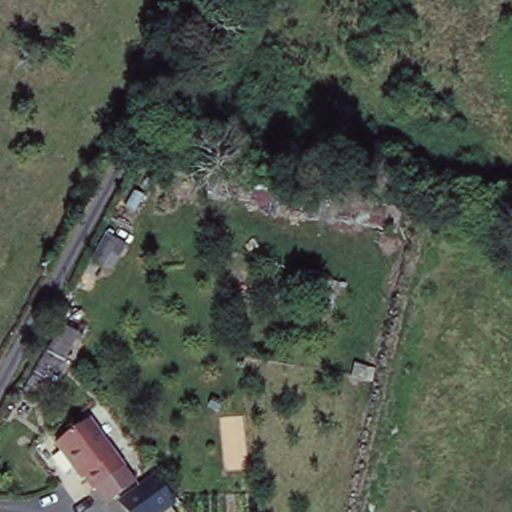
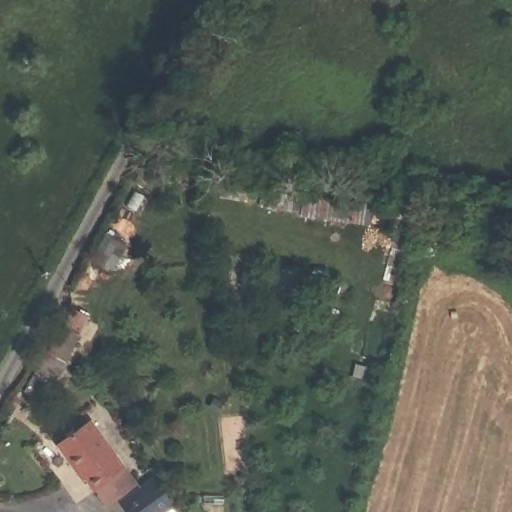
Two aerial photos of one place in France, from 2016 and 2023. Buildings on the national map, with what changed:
unchanged [(89,417),(134,476),(100,498),(86,477),(82,478),(54,442),(89,417)]
unchanged [(174,506),(165,512),(126,512),(121,505),(155,480),(174,506)]

